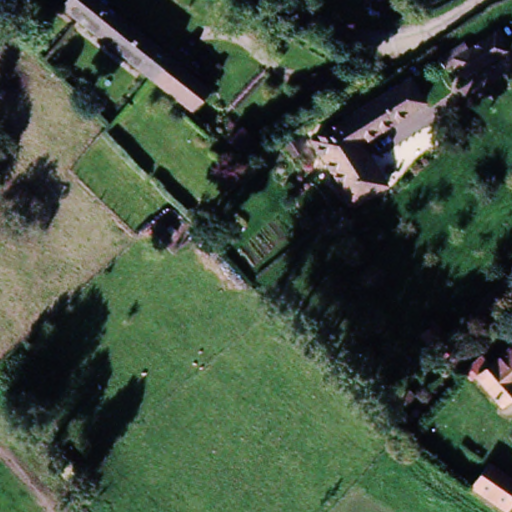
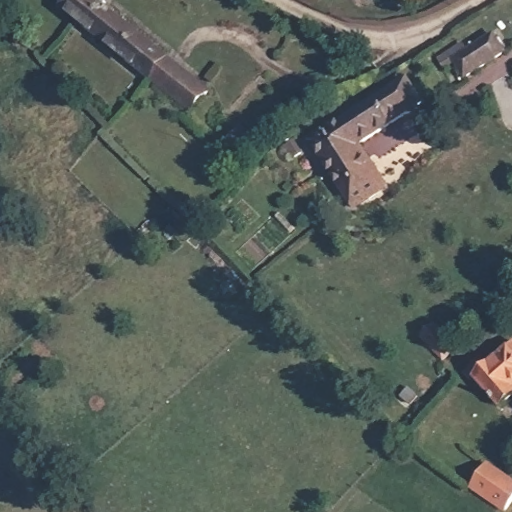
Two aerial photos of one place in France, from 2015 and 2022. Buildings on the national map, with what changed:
unchanged [(206,90),(187,113),(76,15),(66,6),(72,0),(117,0),(120,3),(114,11),(206,90)]
unchanged [(476,54),(494,37),(505,50),(469,81),(452,60),(468,46),(476,54)]
unchanged [(311,146),(403,69),(422,91),(359,146),(375,166),(388,184),(360,207),(346,189),(311,146)]
unchanged [(243,158),(224,143),(236,130),(254,145),(243,158)]
unchanged [(436,345),(411,323),(423,311),(446,333),(436,345)]
unchanged [(511,386),(512,387),(512,396),(500,407),(477,381),(508,351),(512,347),(512,384),(511,386)]
unchanged [(477,486),(495,465),(512,479),(512,506),(507,512),(505,512),(477,486)]

